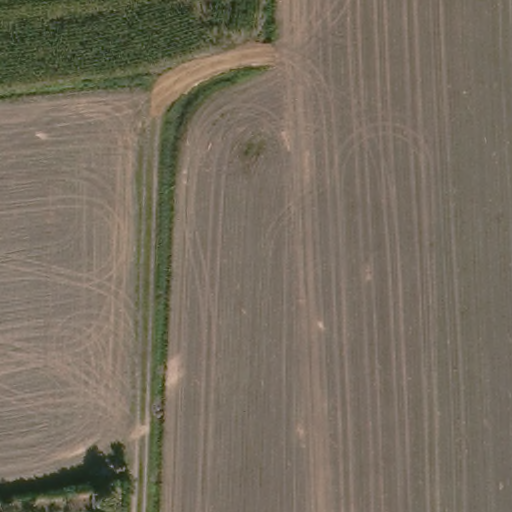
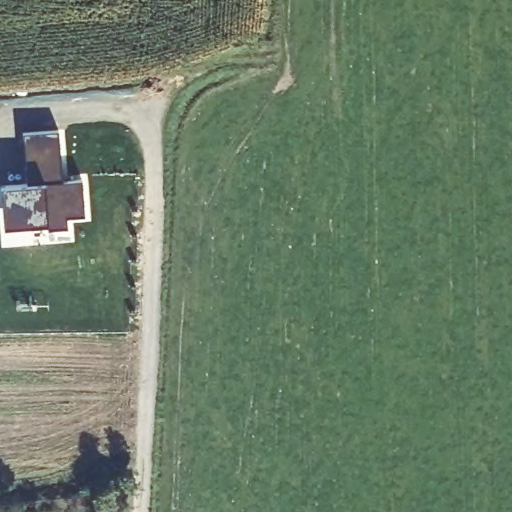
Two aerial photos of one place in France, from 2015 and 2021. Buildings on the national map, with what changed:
new [(25,186),(22,136),(57,133),(61,184),(80,183),(82,220),(64,221),(65,232),(44,233),(44,222),(6,225),(4,188),(25,186)]

